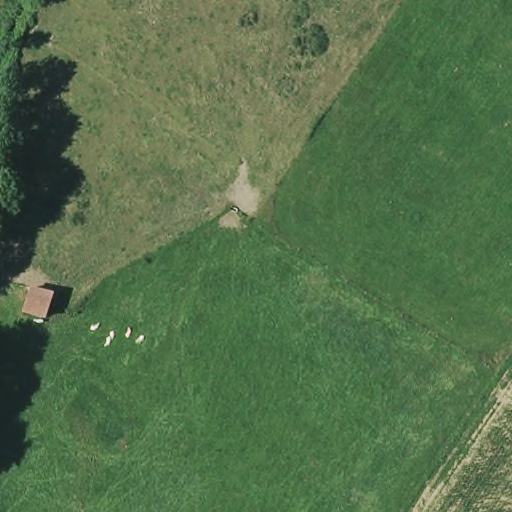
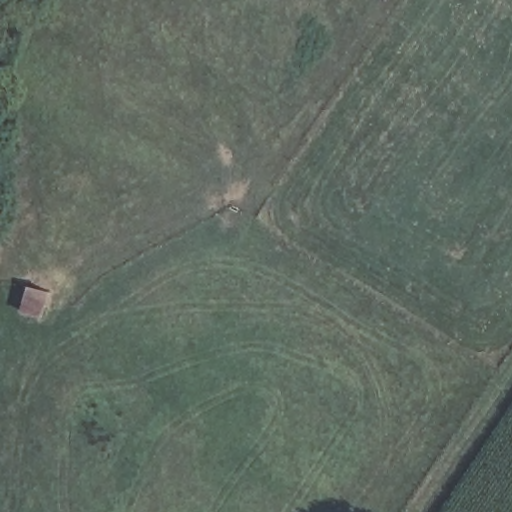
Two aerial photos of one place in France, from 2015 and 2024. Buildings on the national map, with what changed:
unchanged [(48,321),(21,315),(30,286),(59,295),(48,321)]

